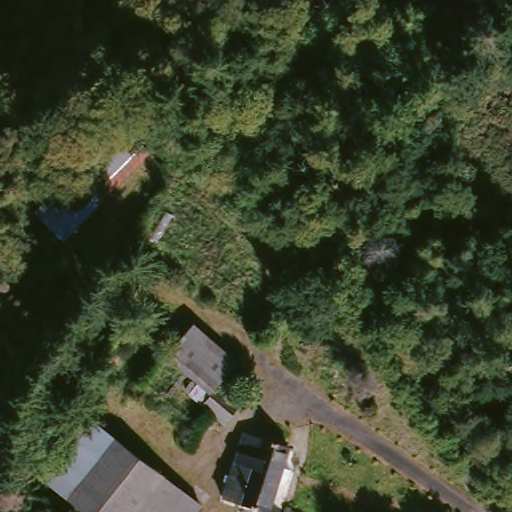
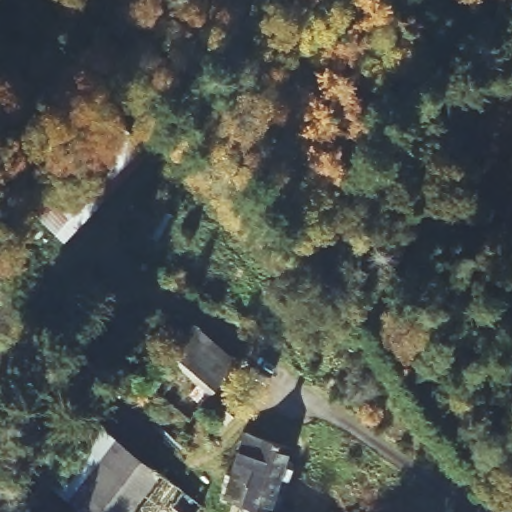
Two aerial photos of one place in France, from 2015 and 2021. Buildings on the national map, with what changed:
unchanged [(121,125),(146,150),(94,205),(100,211),(66,246),(36,214),(121,125)]
unchanged [(181,347),(193,334),(238,370),(226,383),(181,347)]
unchanged [(211,401),(189,384),(183,380),(177,373),(165,365),(179,350),(181,347),(226,383),(214,396),(214,397),(211,401)]
unchanged [(196,509),(193,512),(71,512),(33,482),(81,418),(196,509)]
unchanged [(288,454),(268,512),(242,512),(219,505),(242,436),(288,454)]

